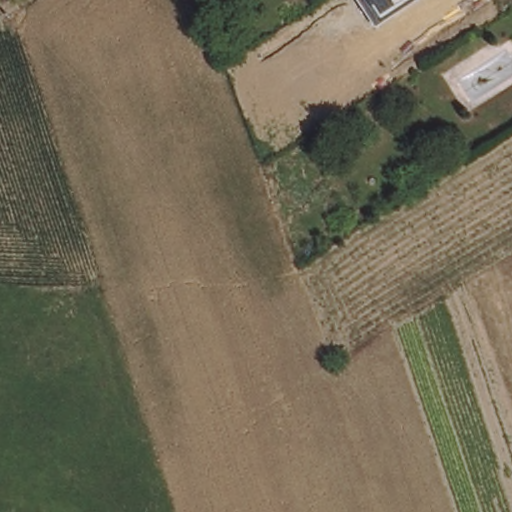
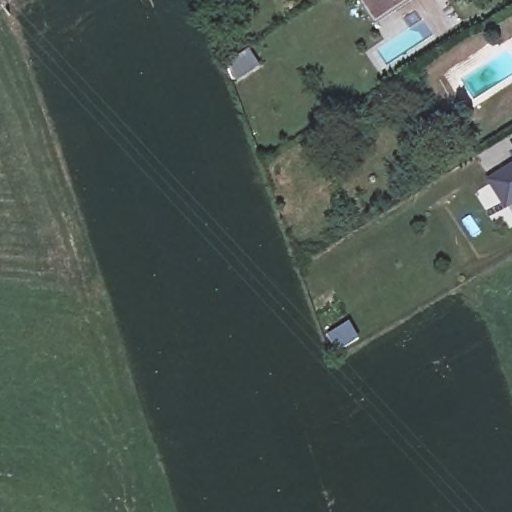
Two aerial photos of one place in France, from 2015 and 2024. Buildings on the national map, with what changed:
unchanged [(358,0),(418,0),(376,28),(358,0)]
new [(507,204),(493,181),(512,169),(512,202),(507,204)]

